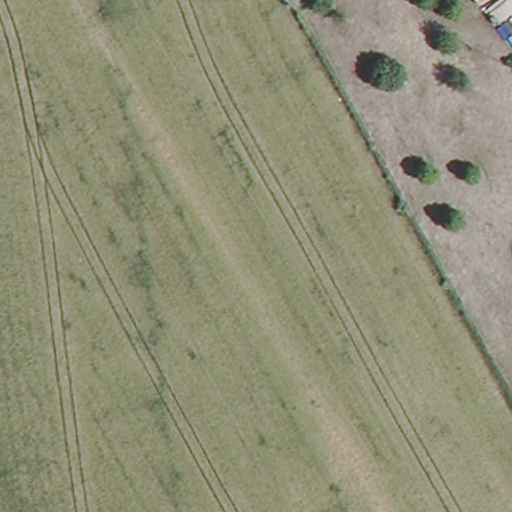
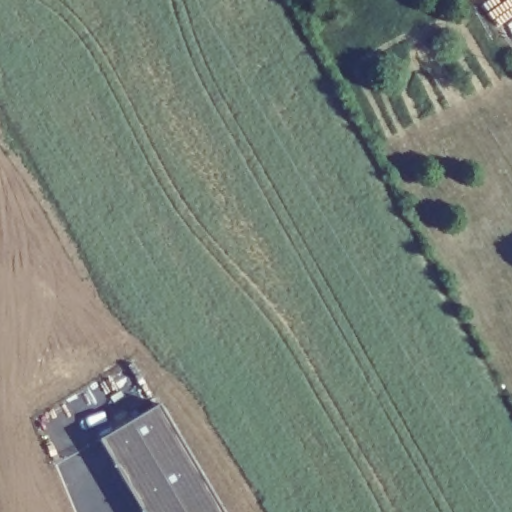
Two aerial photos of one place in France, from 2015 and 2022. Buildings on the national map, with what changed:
unchanged [(512,42),(483,0),(512,0),(512,42)]
new [(222,512),(141,512),(99,441),(158,406),(222,512)]

